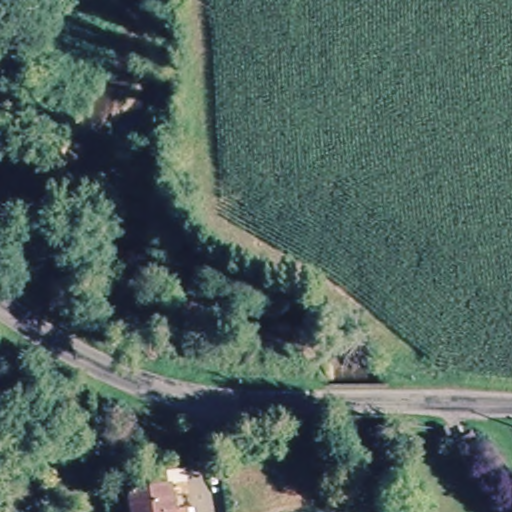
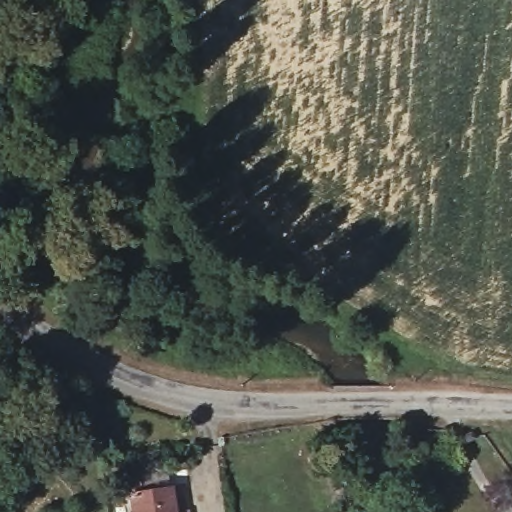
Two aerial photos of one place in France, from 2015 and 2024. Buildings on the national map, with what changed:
unchanged [(128,508),(125,493),(167,484),(171,501),(173,512),(129,512),(128,508)]

